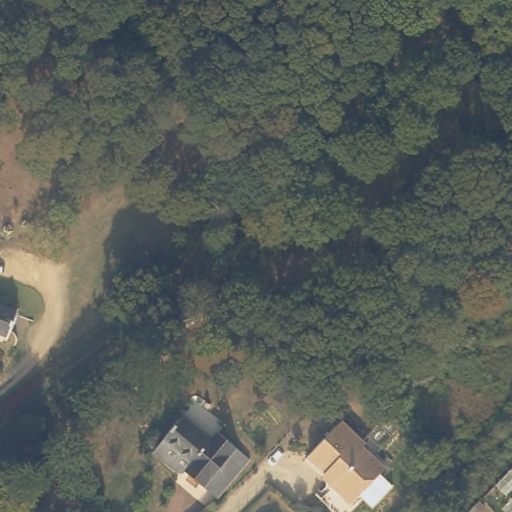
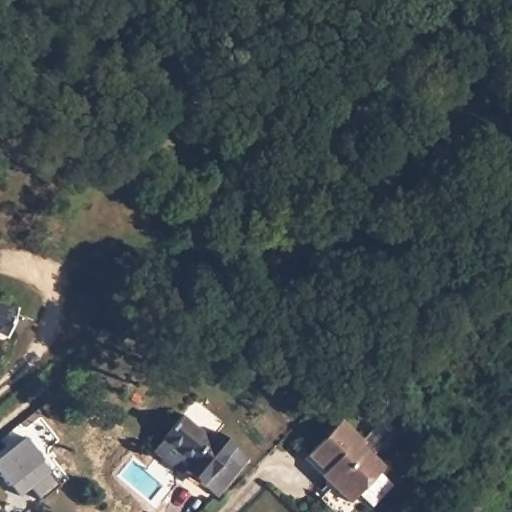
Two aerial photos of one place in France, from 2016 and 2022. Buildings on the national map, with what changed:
unchanged [(15,310),(18,310),(7,336),(0,333),(0,303),(15,310)]
unchanged [(213,441),(219,436),(246,459),(214,496),(186,472),(180,473),(157,452),(187,419),(213,441)]
unchanged [(367,441),(364,444),(387,465),(354,500),(334,482),(334,475),(310,455),(342,420),(367,441)]
new [(62,485),(40,500),(28,488),(18,495),(7,485),(0,478),(0,455),(24,436),(42,460),(62,485)]

